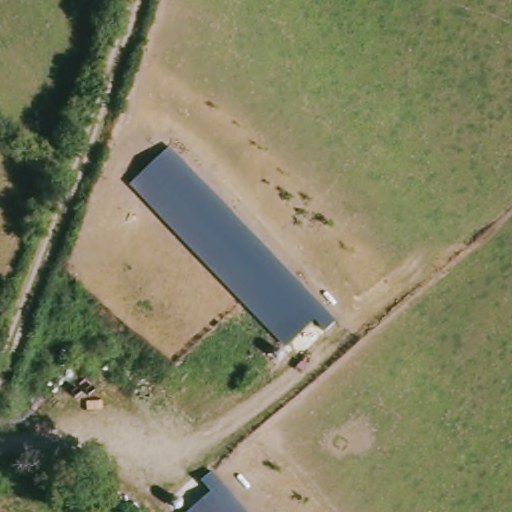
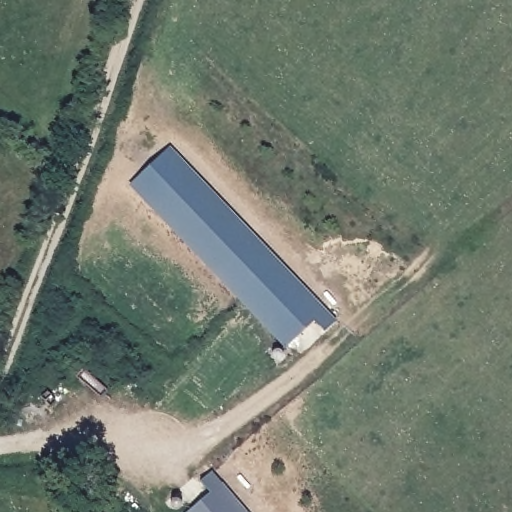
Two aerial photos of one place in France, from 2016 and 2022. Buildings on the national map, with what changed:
unchanged [(337,319),(324,331),(314,320),(285,347),(131,185),(172,147),(337,319)]
unchanged [(218,501),(209,490),(220,480),(230,491),(227,494),(242,512),(206,512),(218,501)]

